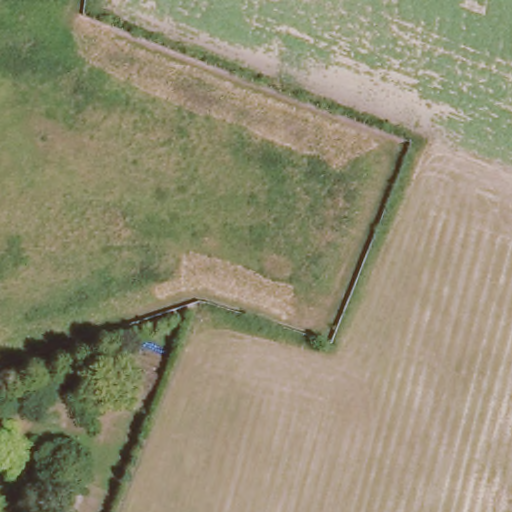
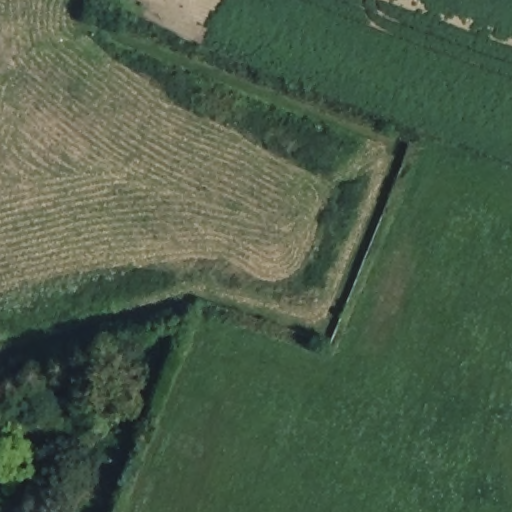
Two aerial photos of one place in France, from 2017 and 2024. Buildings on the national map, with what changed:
unchanged [(141,345),(169,356),(148,412),(120,401),(141,345)]

